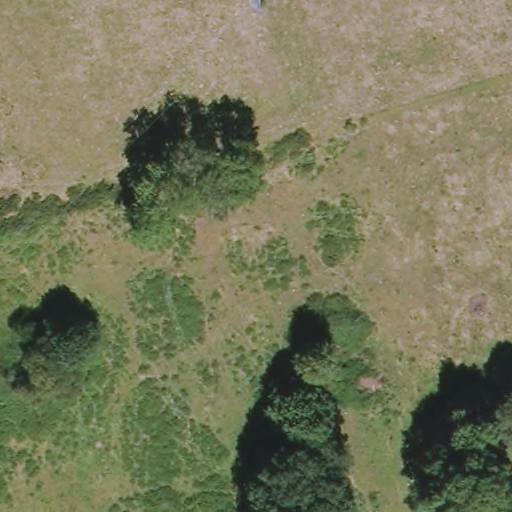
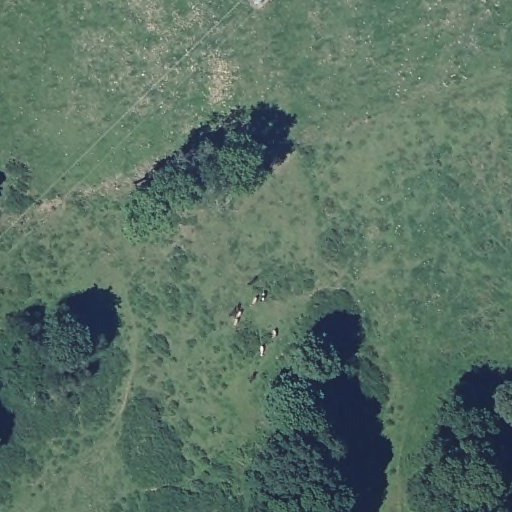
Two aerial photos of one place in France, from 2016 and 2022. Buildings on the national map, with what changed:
[]

